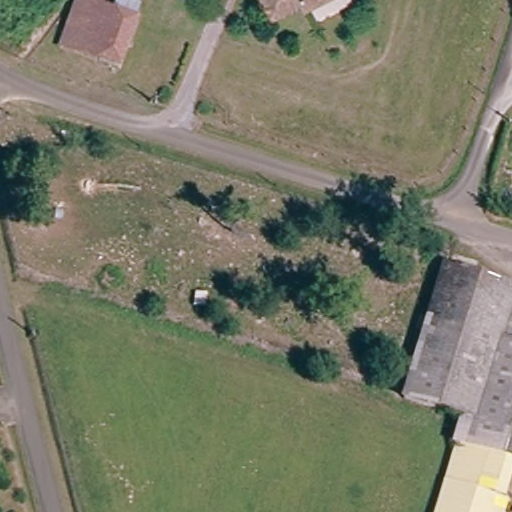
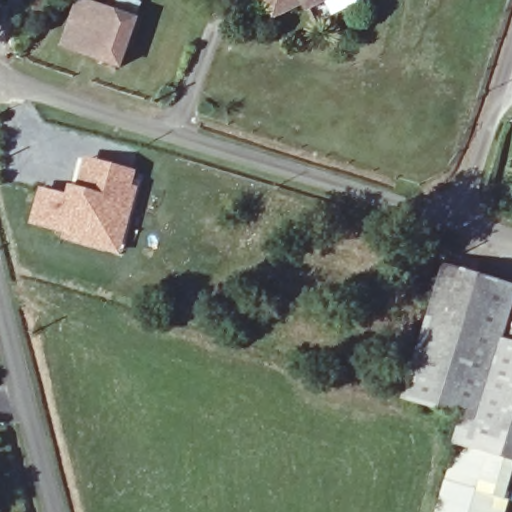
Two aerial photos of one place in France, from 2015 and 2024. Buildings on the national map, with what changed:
unchanged [(79,0),(131,19),(116,61),(64,44),(79,0)]
unchanged [(306,12),(300,4),(271,20),(261,0),(330,0),(306,12)]
new [(67,194),(69,185),(77,187),(84,157),(137,172),(134,187),(137,188),(120,256),(62,241),(64,232),(30,224),(41,187),(67,194)]
unchanged [(452,445),(460,418),(401,400),(438,261),(512,282),(512,301),(503,335),(512,337),(512,472),(503,500),(508,501),(505,512),(448,512),(466,449),(452,445)]

